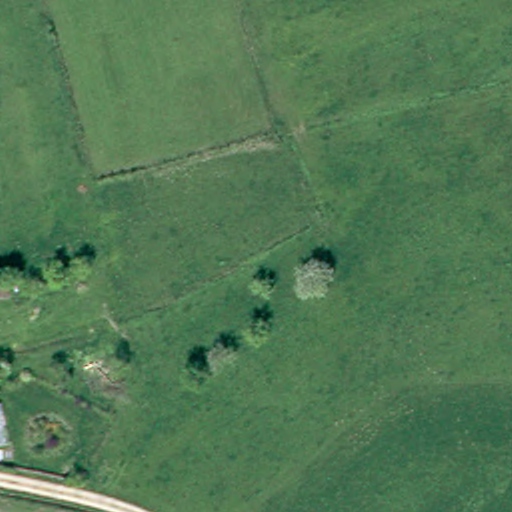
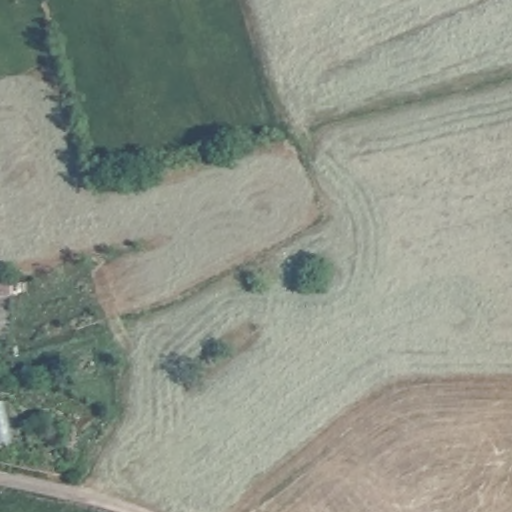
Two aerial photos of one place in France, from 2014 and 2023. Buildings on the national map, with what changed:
[]

